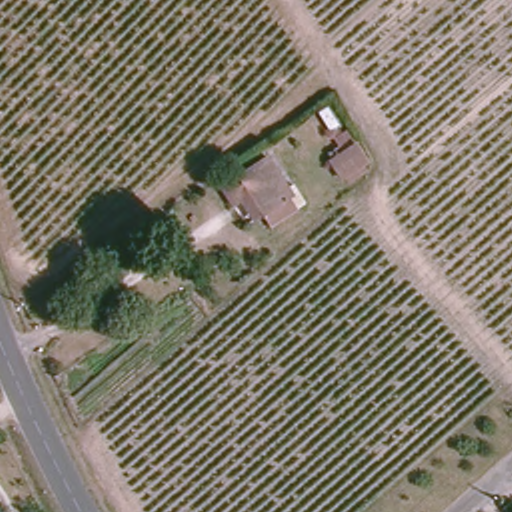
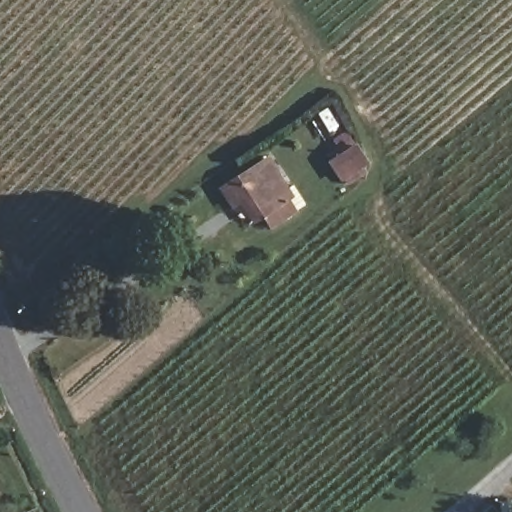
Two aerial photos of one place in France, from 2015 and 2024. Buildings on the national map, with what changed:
unchanged [(342,180),(331,162),(357,145),(368,164),(342,180)]
unchanged [(250,198),(242,204),(231,186),(275,155),(308,205),(282,224),(272,209),(261,216),(250,198)]

